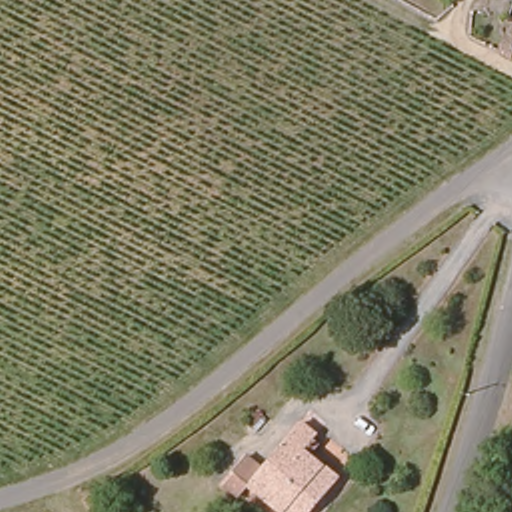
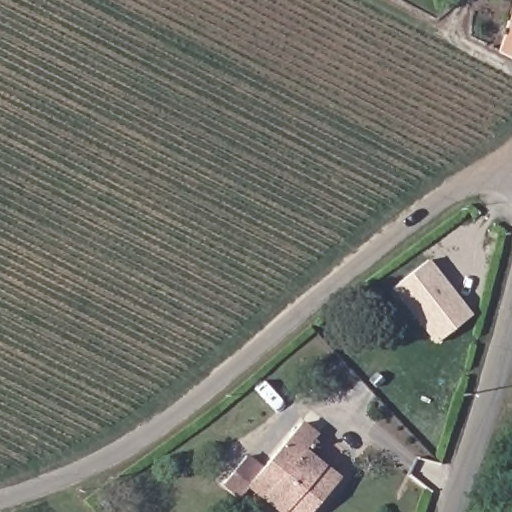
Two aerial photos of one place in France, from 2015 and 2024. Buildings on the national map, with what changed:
new [(391,290),(428,260),(471,315),(433,344),(391,290)]
unchanged [(310,512),(284,512),(251,486),(239,501),(222,488),(241,463),(260,473),(294,420),(313,434),(302,452),(317,462),(336,475),(310,512)]

